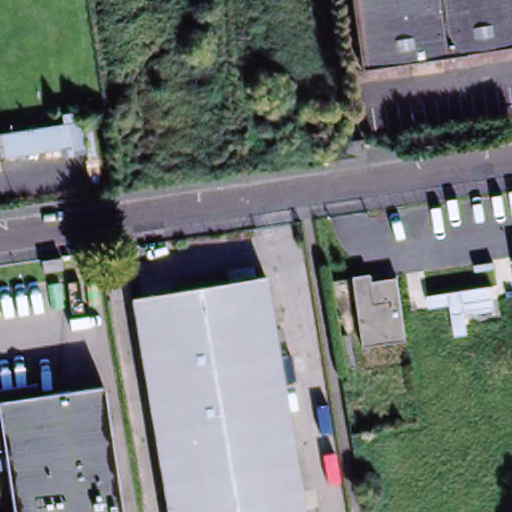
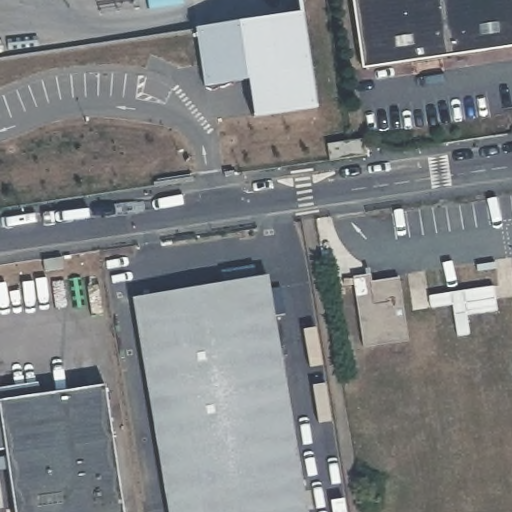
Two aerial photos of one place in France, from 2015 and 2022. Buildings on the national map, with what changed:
unchanged [(468,52),(398,62),(360,68),(350,0),(512,0),(512,47),(468,52)]
new [(300,12),(317,109),(251,117),(245,80),(203,86),(194,28),(300,12)]
demolished [(73,154),(60,156),(59,150),(0,160),(0,134),(67,123),(73,154)]
unchanged [(348,141),(363,139),(365,156),(350,158),(329,161),(327,145),(348,141)]
unchanged [(511,261),(512,268),(512,293),(499,294),(495,264),(511,261)]
unchanged [(169,512),(135,298),(227,283),(225,270),(252,265),(255,279),(265,277),(305,512),(169,512)]
unchanged [(370,275),(372,282),(397,278),(407,341),(363,348),(352,278),(370,275)]
unchanged [(75,390),(75,395),(107,391),(127,512),(17,512),(8,450),(0,452),(0,394),(1,393),(3,401),(75,390)]

